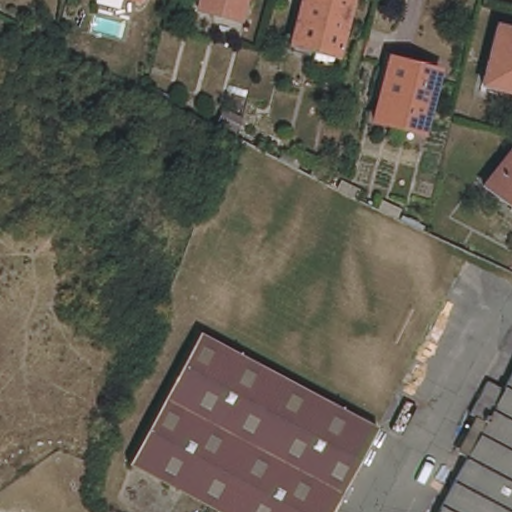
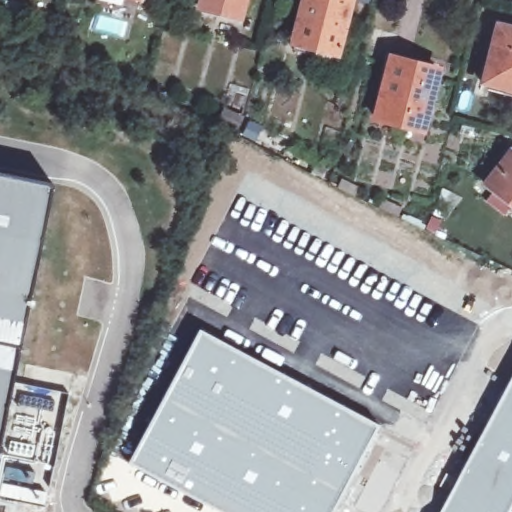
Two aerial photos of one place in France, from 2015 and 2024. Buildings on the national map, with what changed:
unchanged [(201,7),(203,0),(246,0),(241,17),(201,7)]
unchanged [(313,58),(316,45),(296,40),(307,0),(351,0),(338,50),(337,50),(333,63),(313,58)]
unchanged [(480,81),(495,23),(512,27),(512,89),(480,81)]
unchanged [(377,117),(392,57),(440,69),(425,129),(377,117)]
unchanged [(486,184),(512,150),(512,204),(486,184)]
new [(0,451),(0,170),(52,180),(0,451)]
unchanged [(378,425),(332,512),(224,512),(147,470),(130,461),(201,330),(378,425)]
unchanged [(512,373),(512,512),(439,512),(486,421),(471,413),(488,380),(503,389),(512,373)]

